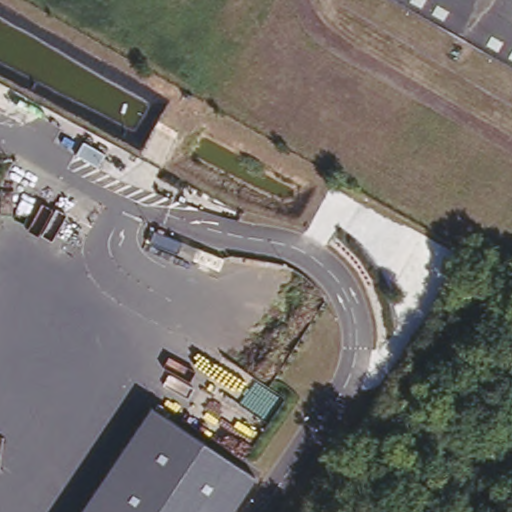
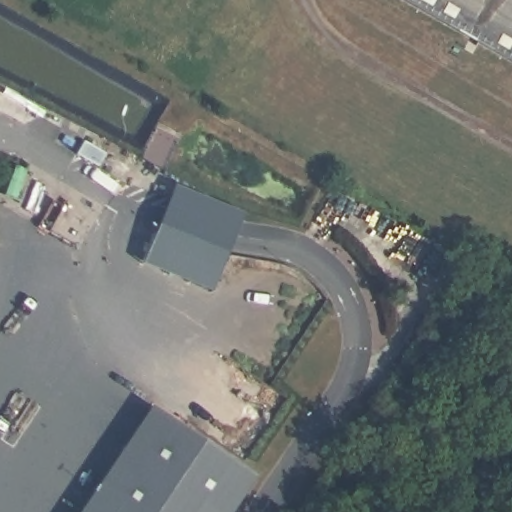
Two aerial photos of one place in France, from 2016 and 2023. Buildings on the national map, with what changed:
unchanged [(409,0),(512,0),(512,59),(409,0)]
new [(244,210),(215,285),(141,261),(176,182),(244,210)]
unchanged [(228,512),(77,512),(147,406),(253,474),(228,512)]

